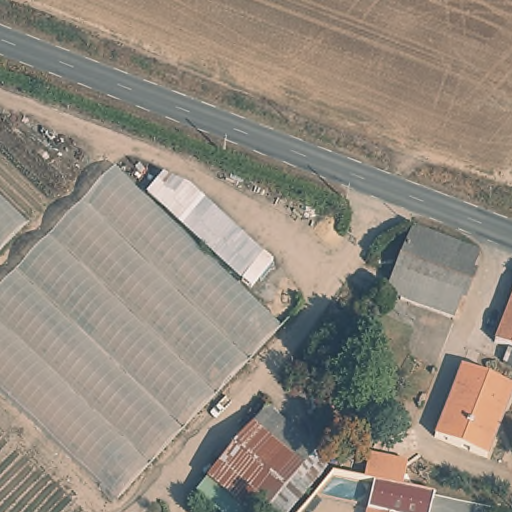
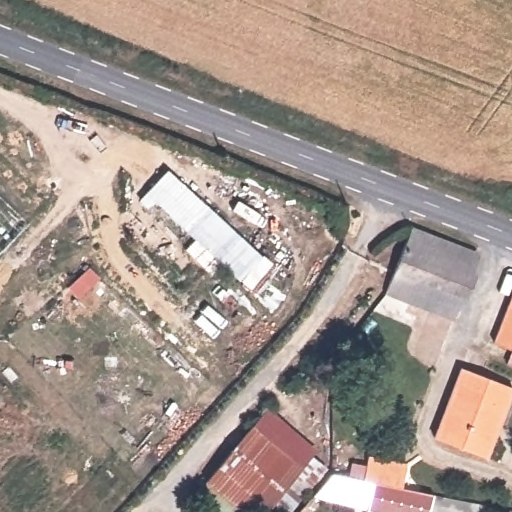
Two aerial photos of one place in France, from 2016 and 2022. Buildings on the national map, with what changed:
demolished [(283,328),(117,503),(0,393),(0,288),(114,167),(283,328)]
unchanged [(0,258),(0,193),(32,224),(0,258)]
unchanged [(482,248),(458,315),(452,313),(443,323),(428,316),(429,306),(386,288),(406,220),(482,248)]
unchanged [(494,336),(512,286),(512,342),(494,336)]
unchanged [(434,440),(462,368),(512,387),(512,401),(498,398),(487,433),(495,437),(486,458),(434,440)]
new [(266,407),(317,451),(313,455),(332,472),(348,476),(351,462),(365,465),(368,455),(406,463),(401,488),(435,495),(431,512),(364,512),(365,511),(365,508),(315,497),(263,451),(212,507),(196,491),(266,407)]
unchanged [(315,497),(301,512),(208,512),(263,451),(315,497)]

